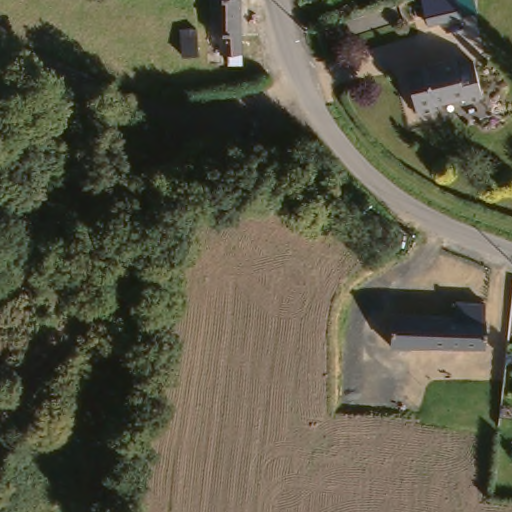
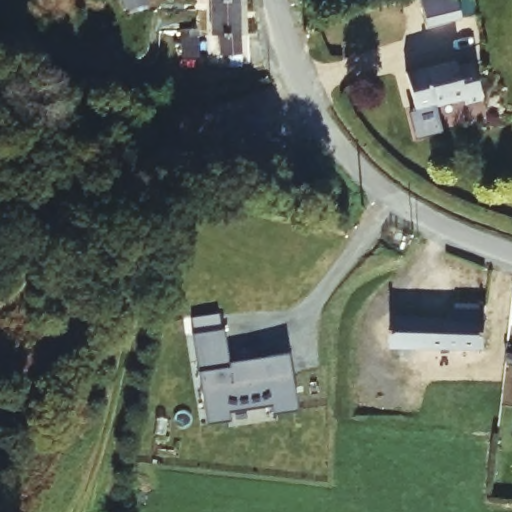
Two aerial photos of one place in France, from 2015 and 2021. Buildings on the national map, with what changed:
unchanged [(242,65),(228,65),(228,54),(220,54),(219,34),(212,34),(211,0),(240,0),(242,65)]
unchanged [(462,17),(428,29),(419,0),(456,0),(462,17)]
unchanged [(181,31),(196,30),(198,56),(182,57),(181,31)]
unchanged [(451,55),(452,61),(468,56),(478,94),(461,98),(459,90),(430,98),(432,105),(412,110),(401,67),(451,55)]
unchanged [(387,348),(389,317),(436,320),(436,306),(485,307),(485,321),(486,321),(485,350),(387,348)]
new [(193,319),(207,317),(219,315),(221,330),(224,329),(231,365),(269,359),(267,355),(288,352),(297,408),(295,408),(294,405),(274,410),(273,400),(228,409),(229,417),(209,421),(211,423),(209,424),(193,333),(195,333),(193,319)]

